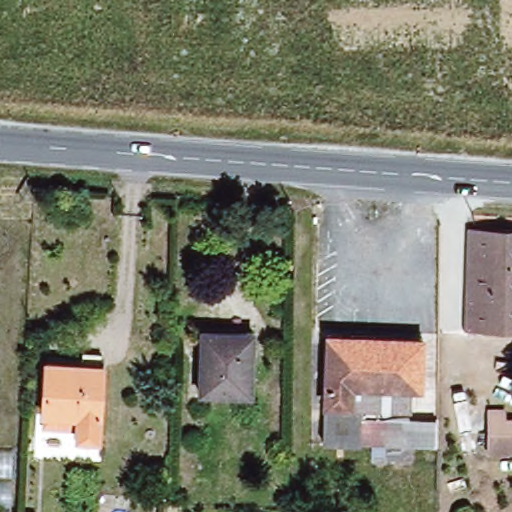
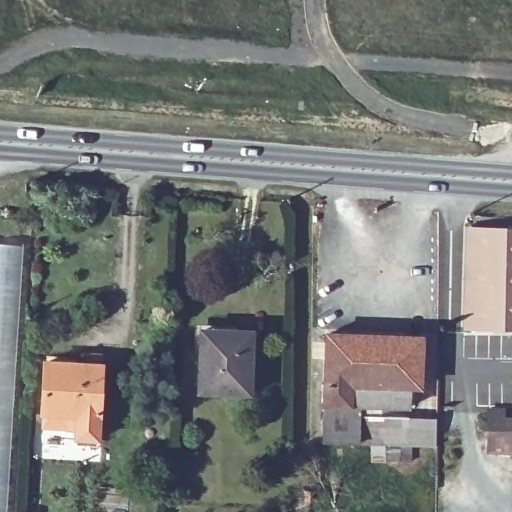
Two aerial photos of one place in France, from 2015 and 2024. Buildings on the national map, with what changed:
unchanged [(512,232),(512,331),(463,328),(468,230),(512,232)]
new [(6,512),(0,512),(0,243),(24,244),(6,512)]
unchanged [(252,334),(247,398),(193,394),(198,330),(252,334)]
unchanged [(412,445),(411,460),(366,460),(368,442),(360,442),(321,441),(322,424),(324,422),(323,405),(324,334),(424,335),(421,387),(410,388),(409,408),(378,407),(378,416),(433,417),(433,445),(412,445)]
unchanged [(48,415),(51,362),(103,365),(98,441),(76,441),(76,433),(47,431),(48,415)]
unchanged [(504,408),(503,419),(512,420),(512,454),(486,453),(488,407),(504,408)]
unchanged [(12,512),(12,510),(35,512),(12,512)]

